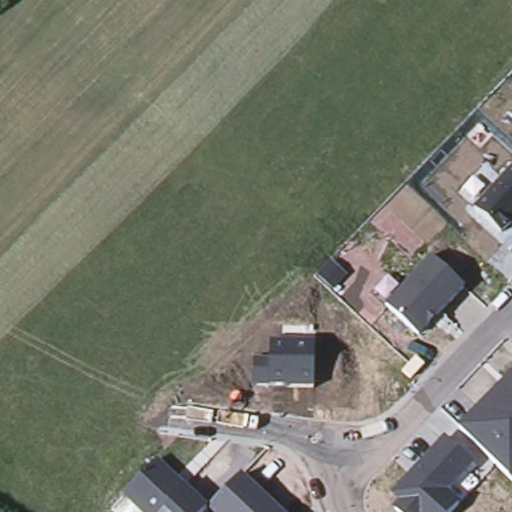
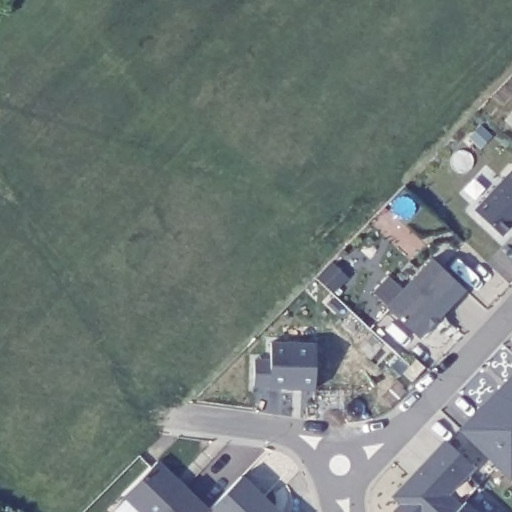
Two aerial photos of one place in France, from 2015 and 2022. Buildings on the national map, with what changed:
unchanged [(512,169),(512,225),(502,236),(474,211),(512,169)]
unchanged [(434,260),(464,289),(419,337),(386,306),(434,260)]
unchanged [(272,386),(253,385),(254,359),(271,359),(270,341),(315,343),(314,389),(272,386)]
unchanged [(512,376),(512,476),(510,478),(458,428),(512,376)]
unchanged [(399,502),(391,493),(445,437),(474,466),(448,493),(459,505),(452,512),(398,512),(394,507),(399,502)]
unchanged [(205,510),(203,512),(143,512),(126,496),(157,463),(205,510)]
unchanged [(244,475),(282,512),(214,512),(211,508),(244,475)]

